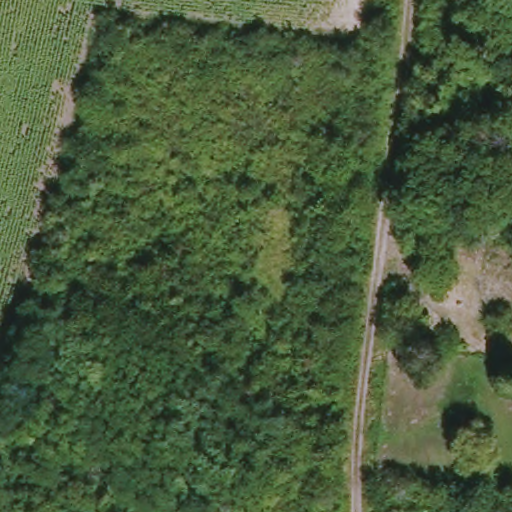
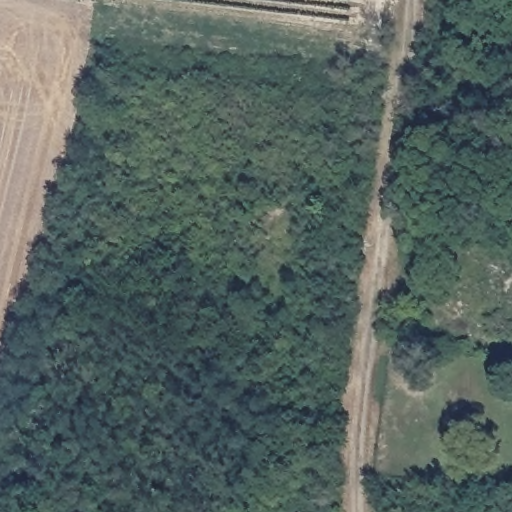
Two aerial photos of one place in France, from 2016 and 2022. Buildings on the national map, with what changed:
[]

